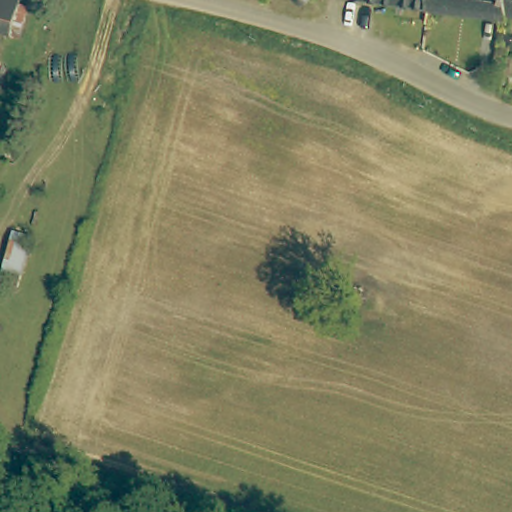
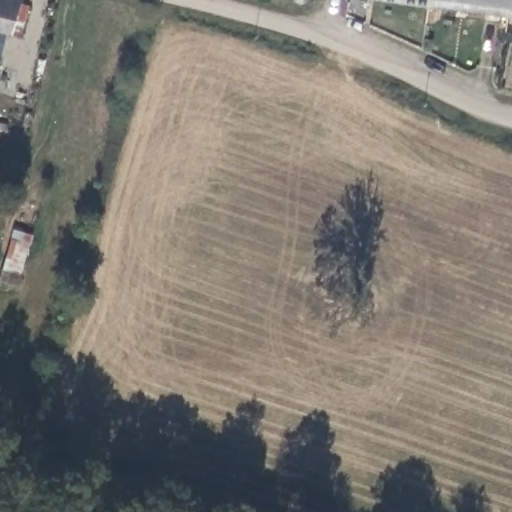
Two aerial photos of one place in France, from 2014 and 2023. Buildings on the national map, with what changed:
unchanged [(30,6),(16,39),(0,31),(0,13),(6,0),(17,0),(30,6)]
unchanged [(310,9),(296,5),(296,0),(314,0),(313,2),(310,1),(310,9)]
unchanged [(404,0),(512,0),(512,7),(511,11),(404,0)]
unchanged [(511,11),(512,7),(512,11),(511,11)]

